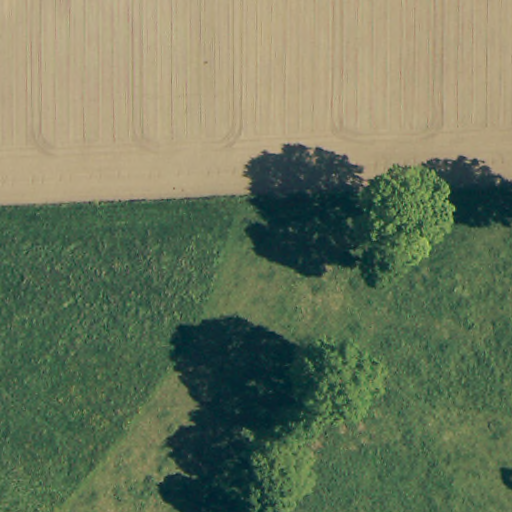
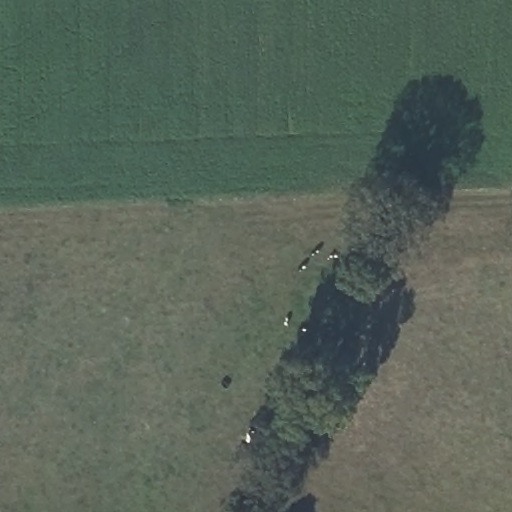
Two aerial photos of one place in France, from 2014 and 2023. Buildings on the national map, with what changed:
[]

